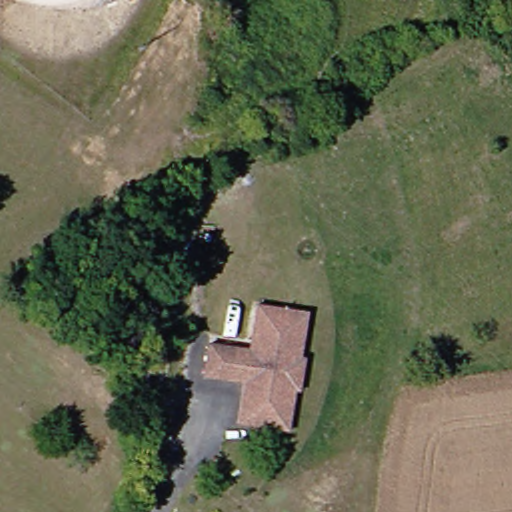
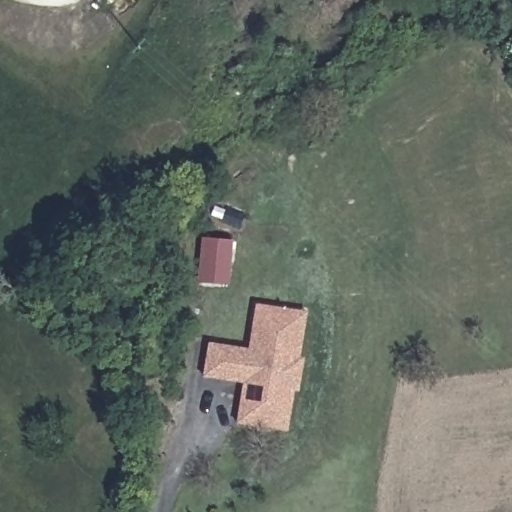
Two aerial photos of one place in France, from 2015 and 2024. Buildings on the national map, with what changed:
new [(233,239),(230,286),(198,283),(202,238),(233,239)]
unchanged [(231,427),(239,387),(199,379),(206,347),(246,354),(255,310),(292,318),(283,361),(290,363),(284,395),(277,394),(272,417),(258,414),(255,431),(231,427)]
unchanged [(305,320),(296,364),(300,365),(294,397),(289,396),(281,437),(255,431),(258,414),(272,417),(277,394),(284,395),(290,363),(283,361),(292,318),(305,320)]

